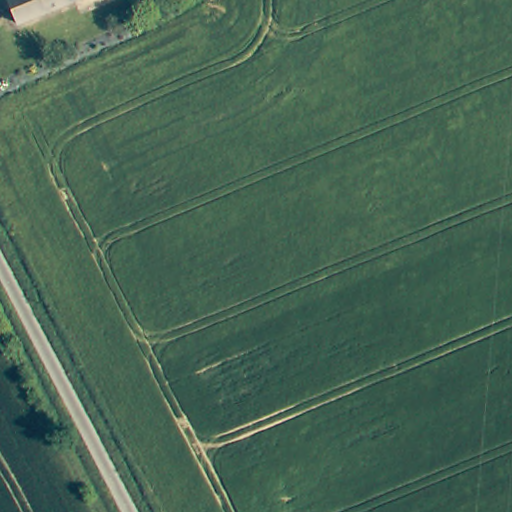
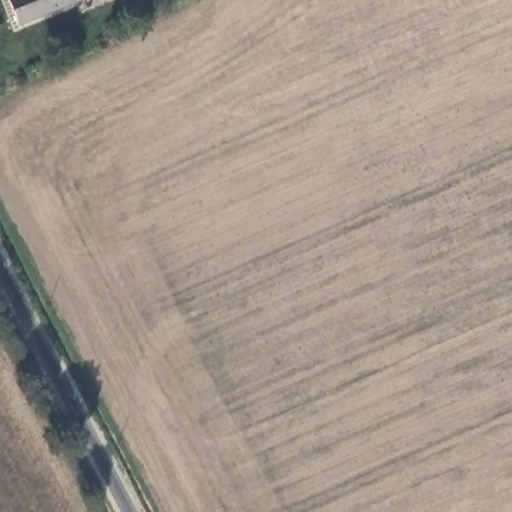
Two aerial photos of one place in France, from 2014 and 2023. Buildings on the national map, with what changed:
unchanged [(48,14),(13,28),(12,28),(9,19),(0,0),(81,0),(48,14)]

